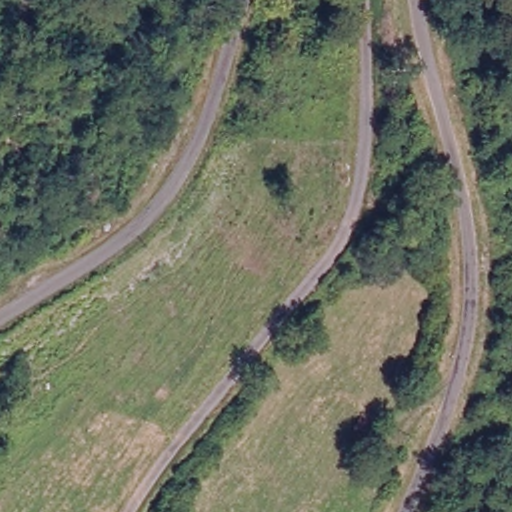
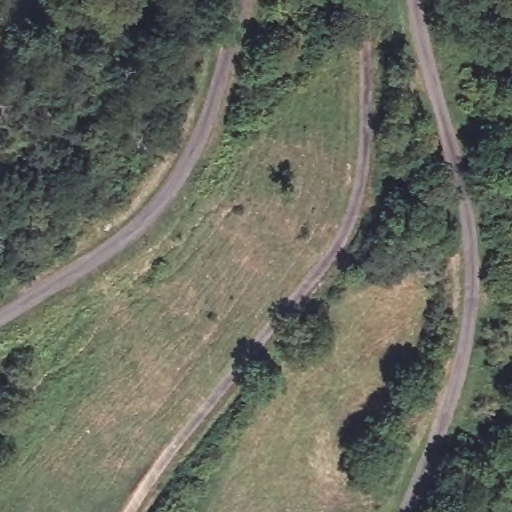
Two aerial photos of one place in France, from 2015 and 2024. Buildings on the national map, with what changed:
unchanged [(362,472),(338,465),(344,439),(371,446),(362,472)]

